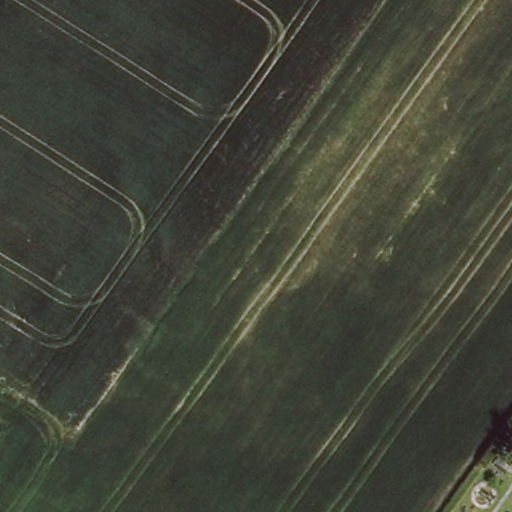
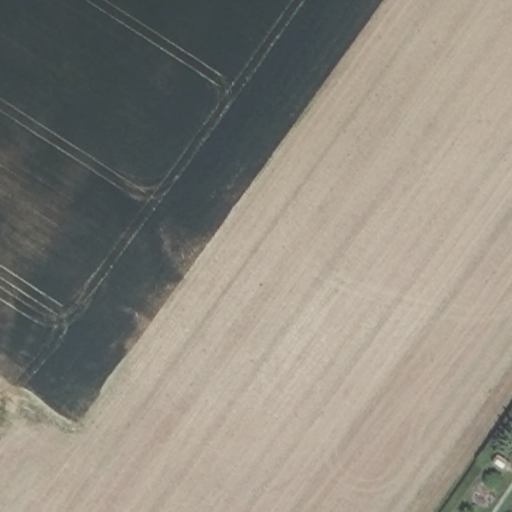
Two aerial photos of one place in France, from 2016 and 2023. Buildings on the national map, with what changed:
unchanged [(512,467),(511,468),(498,460),(512,441),(512,467)]

